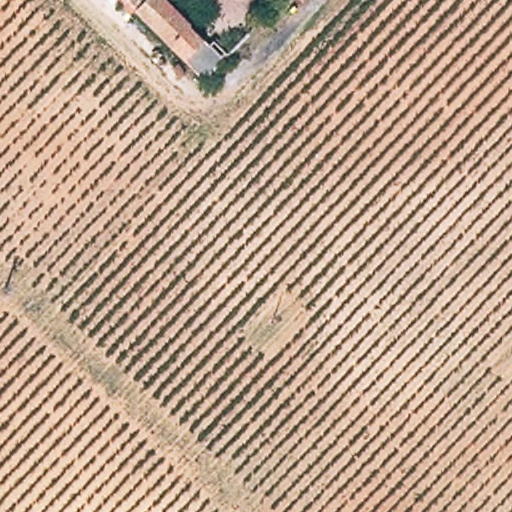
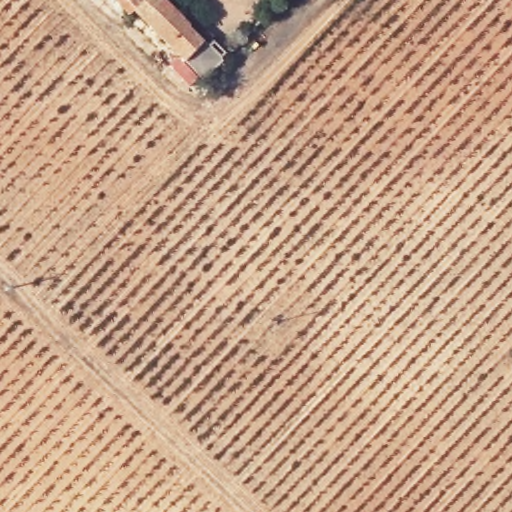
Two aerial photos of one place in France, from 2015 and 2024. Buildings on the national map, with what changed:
unchanged [(226,49),(203,75),(131,0),(176,0),(226,49)]

